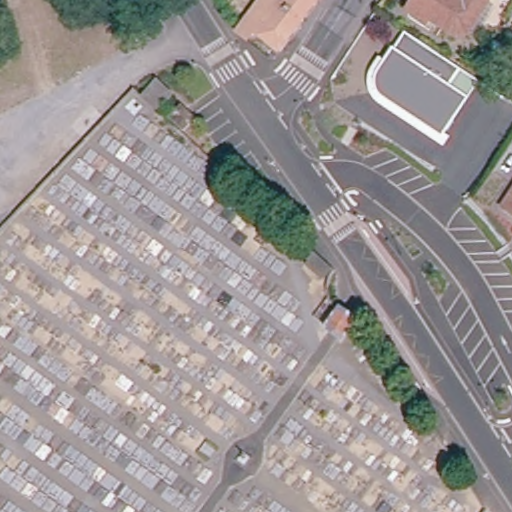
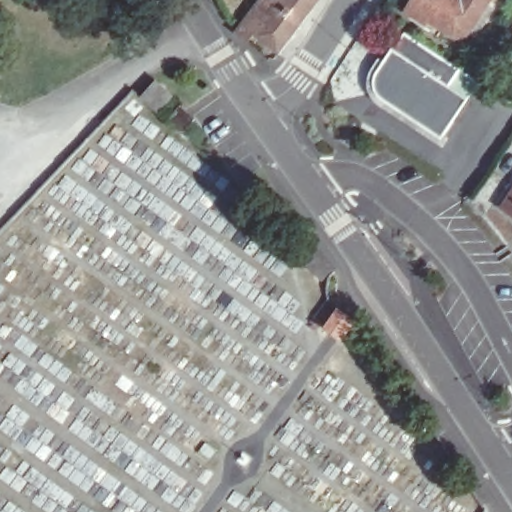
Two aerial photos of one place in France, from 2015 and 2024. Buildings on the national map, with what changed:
unchanged [(310,0),(279,40),(255,22),(246,33),(238,26),(258,0),(310,0)]
unchanged [(463,0),(464,1),(465,0),(492,0),(472,35),(456,37),(434,24),(412,9),(417,0),(463,0)]
unchanged [(457,69),(446,86),(467,101),(446,132),(454,137),(445,150),(373,104),(367,94),(367,82),(379,59),(384,62),(393,52),(405,37),(457,69)]
unchanged [(157,82),(173,99),(160,112),(144,97),(157,82)]
unchanged [(168,120),(180,109),(190,117),(179,129),(168,120)]
unchanged [(205,131),(214,137),(207,145),(199,137),(205,131)]
unchanged [(504,208),(512,195),(512,213),(504,208)]

